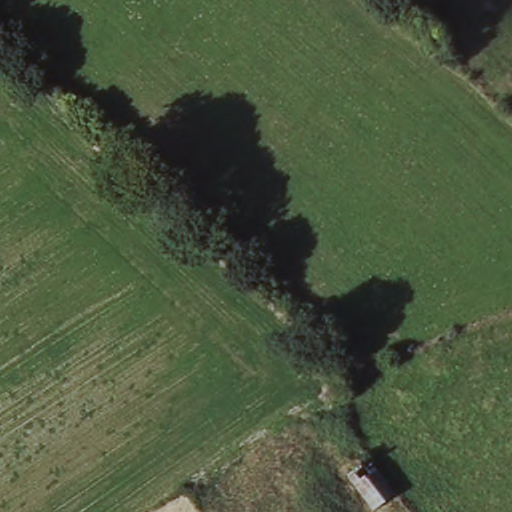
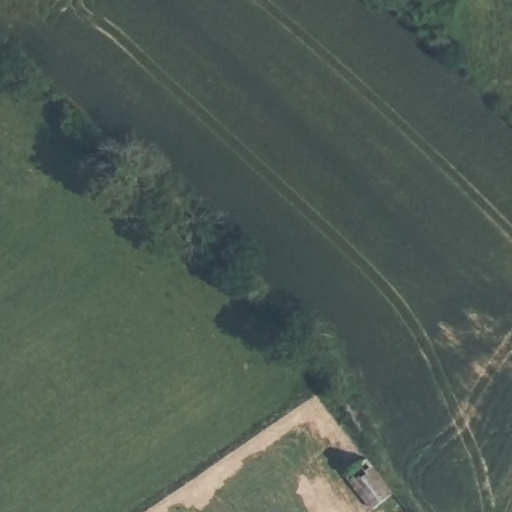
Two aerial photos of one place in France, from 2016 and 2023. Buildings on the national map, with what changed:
unchanged [(394,499),(377,512),(371,512),(347,480),(353,475),(348,469),(357,462),(362,470),(367,465),(394,499)]

